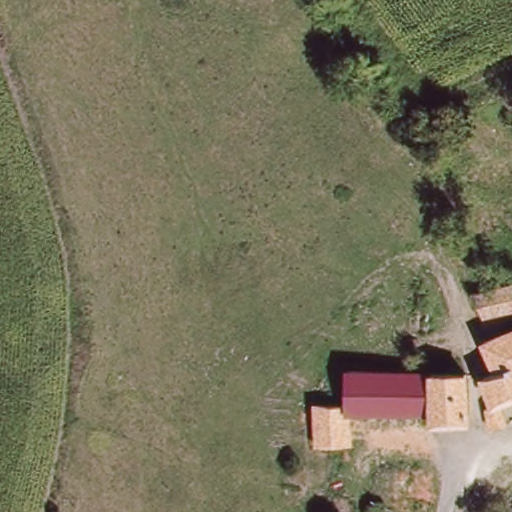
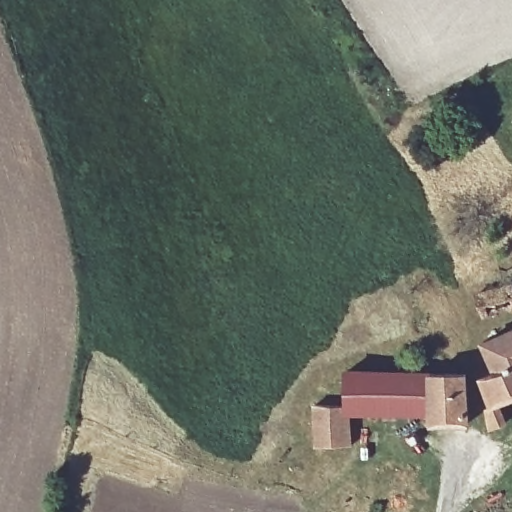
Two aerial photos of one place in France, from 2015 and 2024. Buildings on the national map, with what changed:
unchanged [(502,412),(508,429),(490,435),(484,415),(486,412),(482,380),(490,375),(481,344),(512,333),(512,408),(502,412)]
unchanged [(467,433),(431,432),(430,426),(349,422),(346,454),(313,453),(316,411),(347,412),(349,377),(467,382),(467,433)]

